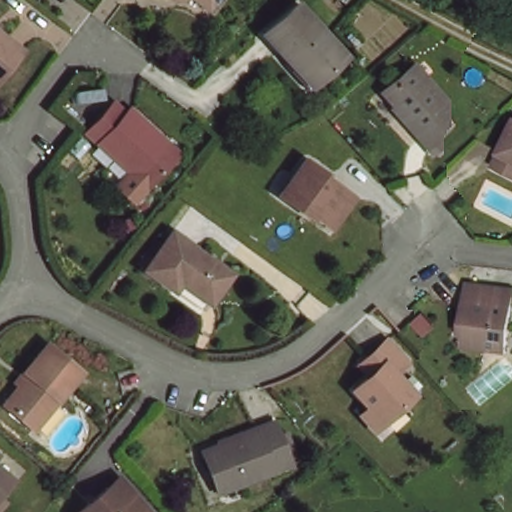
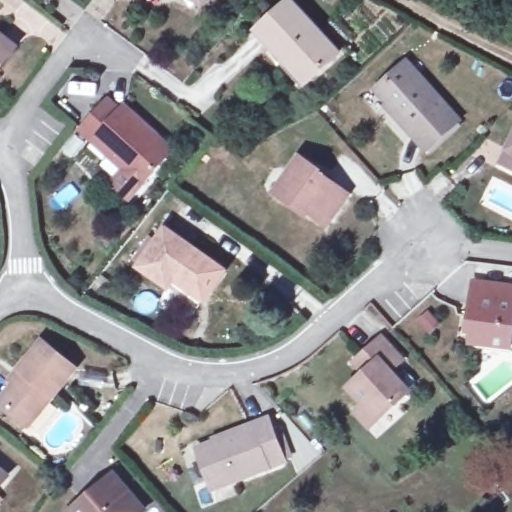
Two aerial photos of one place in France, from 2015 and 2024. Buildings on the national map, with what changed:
unchanged [(271,50),(274,47),(256,25),(284,0),(295,0),(337,47),(307,76),(299,83),(271,50)]
unchanged [(0,69),(0,32),(17,45),(0,69)]
unchanged [(455,115),(421,145),(388,108),(391,105),(371,82),(402,56),(455,115)]
unchanged [(112,178),(125,164),(81,124),(107,94),(119,105),(123,101),(151,126),(172,145),(168,148),(141,178),(127,193),(112,178)]
unchanged [(499,159),(512,132),(512,166),(499,159)]
unchanged [(320,171),(317,175),(350,196),(330,227),(297,205),(294,209),(275,196),(301,157),(320,171)]
unchanged [(164,282),(137,262),(164,226),(220,267),(201,296),(195,305),(164,282)]
unchanged [(512,287),(512,320),(509,345),(471,341),(473,316),(466,314),(470,281),(512,287)]
unchanged [(27,421),(0,398),(0,393),(21,371),(15,365),(42,337),(75,365),(27,421)]
unchanged [(352,413),(361,405),(346,388),(360,375),(349,364),(357,357),(377,339),(397,362),(387,373),(405,394),(375,420),(367,429),(352,413)]
unchanged [(285,460),(211,487),(197,448),(250,429),(250,422),(269,417),(285,460)]
unchanged [(0,480),(0,468),(6,473),(0,480)]
unchanged [(133,512),(73,512),(71,510),(117,472),(144,502),(133,512)]

